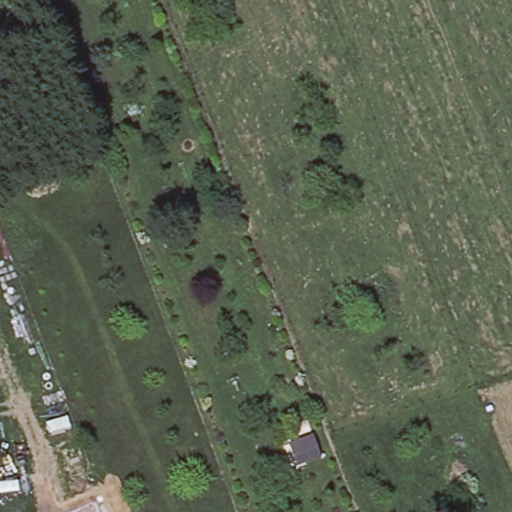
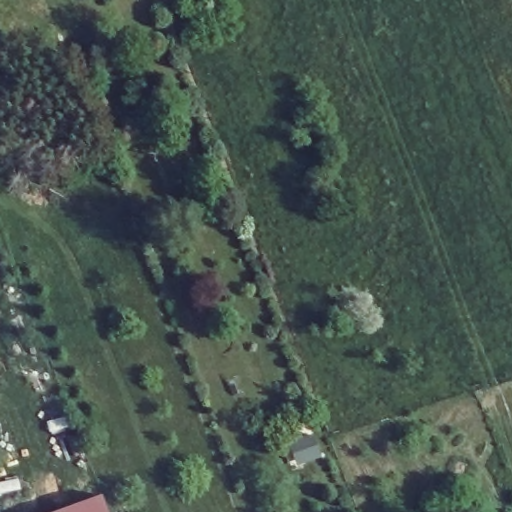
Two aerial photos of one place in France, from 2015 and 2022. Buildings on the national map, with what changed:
new [(107,512),(58,512),(101,496),(107,512)]

